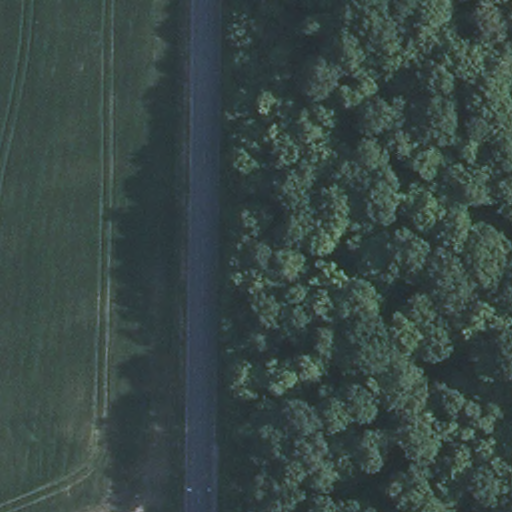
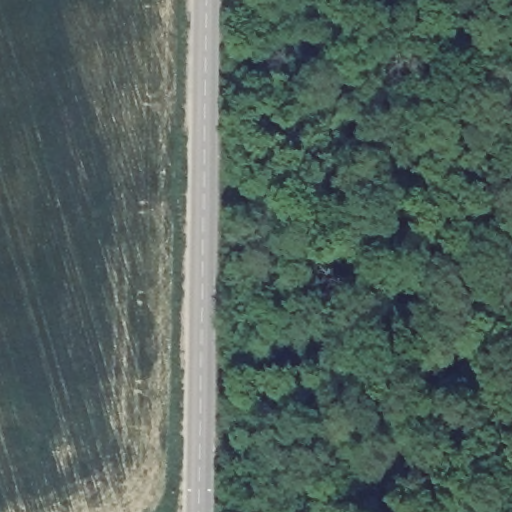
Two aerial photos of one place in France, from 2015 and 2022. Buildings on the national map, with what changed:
unchanged [(297,117),(292,219),(257,220),(265,117),(297,117)]

